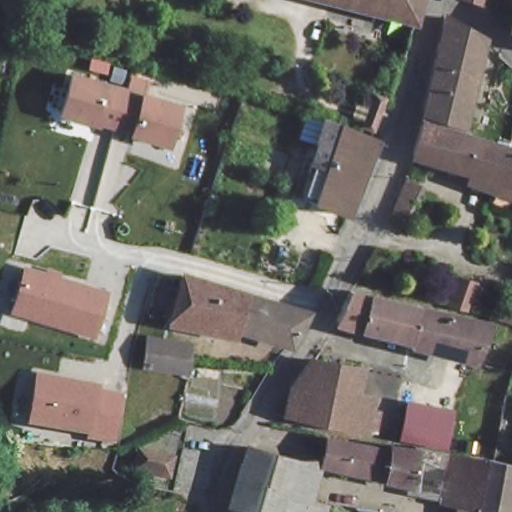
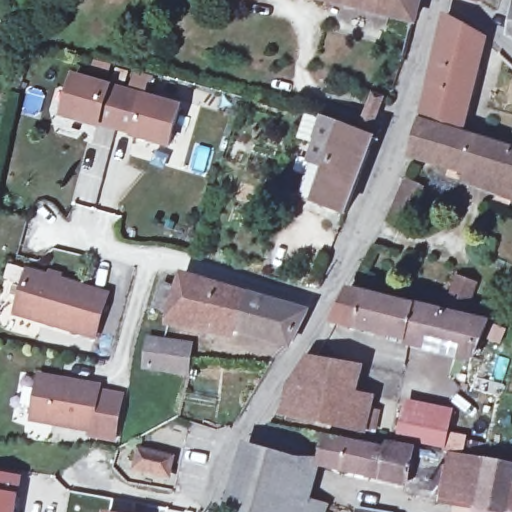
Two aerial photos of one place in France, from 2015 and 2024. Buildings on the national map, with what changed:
unchanged [(324,2),(316,0),(324,0),(324,2)]
unchanged [(416,25),(324,2),(324,0),(422,0),(416,25)]
unchanged [(476,6),(460,0),(478,0),(476,6)]
unchanged [(415,161),(423,128),(446,23),(483,42),(459,139),(492,149),(511,155),(512,155),(512,208),(509,219),(492,214),(498,192),(483,189),(485,180),(415,161)]
unchanged [(172,151),(60,120),(74,73),(186,104),(172,151)]
unchanged [(325,122),(358,135),(364,137),(374,141),(371,150),(368,158),(347,216),(316,205),(332,154),(316,145),(325,122)]
unchanged [(384,223),(391,209),(405,179),(419,185),(405,215),(398,229),(384,223)]
unchanged [(98,343),(11,318),(26,267),(113,292),(98,343)]
unchanged [(320,315),(305,343),(251,328),(249,335),(182,322),(183,318),(184,316),(184,315),(185,313),(171,310),(178,288),(191,292),(195,278),(276,302),(320,315)]
unchanged [(466,311),(449,306),(456,278),(473,283),(466,311)]
unchanged [(407,341),(359,329),(333,322),(346,292),(366,297),(414,308),(486,325),(473,357),(407,341)]
unchanged [(176,345),(206,349),(203,376),(168,372),(160,371),(163,343),(176,345)]
unchanged [(309,358),(362,368),(357,397),(374,402),(367,427),(319,421),(284,415),(288,386),(303,388),(309,358)]
unchanged [(94,436),(28,426),(37,373),(102,383),(94,436)]
unchanged [(403,405),(448,415),(443,445),(397,435),(403,405)]
unchanged [(403,490),(404,481),(319,462),(325,437),(386,448),(387,442),(435,450),(444,451),(437,495),(403,490)]
unchanged [(238,512),(227,509),(245,446),(252,448),(293,461),(285,492),(279,512),(238,512)]
unchanged [(139,450),(178,457),(173,482),(134,474),(139,450)]
unchanged [(473,512),(476,502),(453,497),(437,495),(444,451),(512,463),(512,512),(473,512)]
new [(18,498),(16,497),(14,512),(0,512),(0,472),(20,476),(18,498)]
unchanged [(322,512),(279,512),(285,492),(324,502),(322,512)]
unchanged [(475,502),(473,512),(451,512),(453,497),(475,502)]
unchanged [(364,512),(356,512),(356,511),(364,512)]

